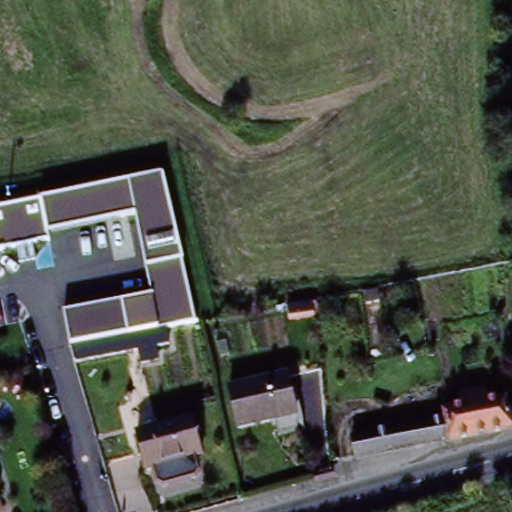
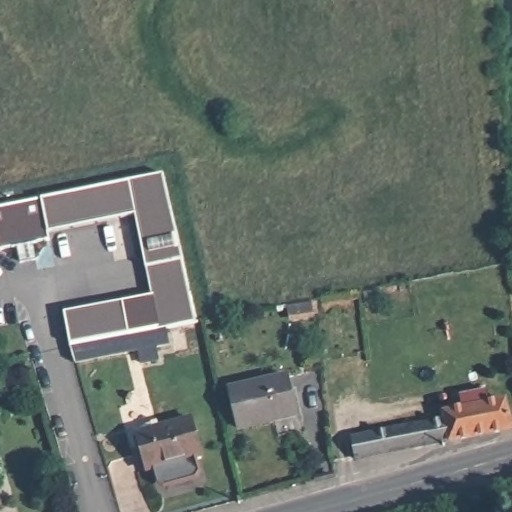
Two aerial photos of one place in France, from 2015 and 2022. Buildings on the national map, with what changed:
unchanged [(18,247),(0,251),(0,207),(160,174),(195,321),(158,327),(137,214),(50,232),(52,240),(34,244),(37,258),(22,262),(18,247)]
unchanged [(68,344),(61,311),(121,299),(128,333),(68,344)]
unchanged [(68,344),(128,333),(158,327),(161,345),(147,348),(150,359),(142,361),(139,349),(73,361),(68,344)]
unchanged [(287,375),(297,414),(242,428),(232,389),(287,375)]
unchanged [(442,414),(468,409),(466,397),(485,392),(488,406),(506,402),(512,423),(512,428),(450,442),(444,421),(442,414)]
unchanged [(135,435),(186,417),(200,453),(155,468),(147,472),(135,435)]
unchanged [(444,421),(450,442),(357,461),(352,439),(392,431),(444,421)]
unchanged [(0,506),(0,503),(1,506),(0,506)]

